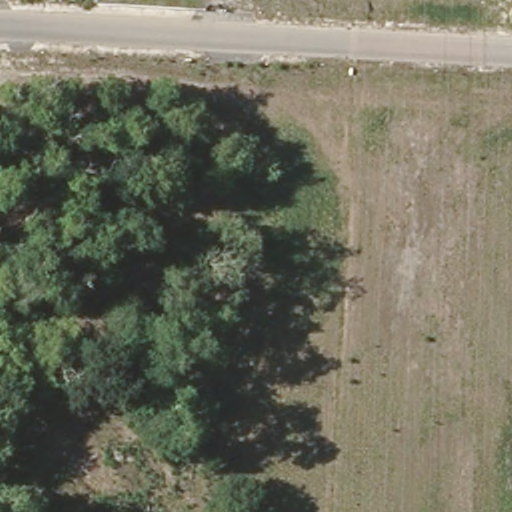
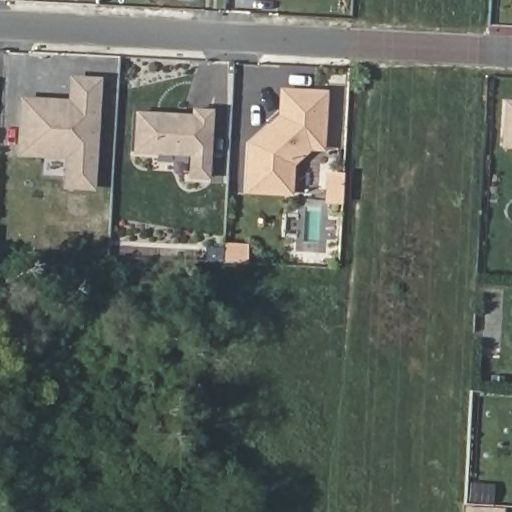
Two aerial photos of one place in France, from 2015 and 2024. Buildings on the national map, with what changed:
new [(26,100),(57,101),(57,109),(74,110),(76,79),(103,81),(96,189),(69,187),(71,157),(23,154),(26,100)]
new [(327,90),(324,150),(320,150),(320,145),(309,145),(305,148),(309,152),(294,166),(292,197),(248,194),(244,171),(246,142),(276,116),(278,87),(327,90)]
new [(512,148),(506,147),(508,104),(512,104),(512,148)]
new [(142,112),(198,116),(199,111),(216,112),(212,178),(194,177),(196,155),(139,152),(142,112)]

